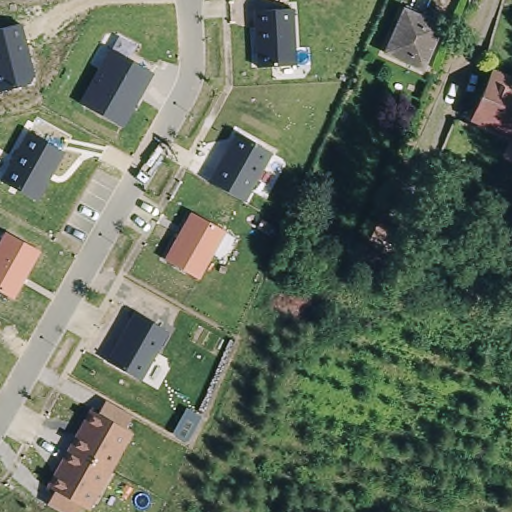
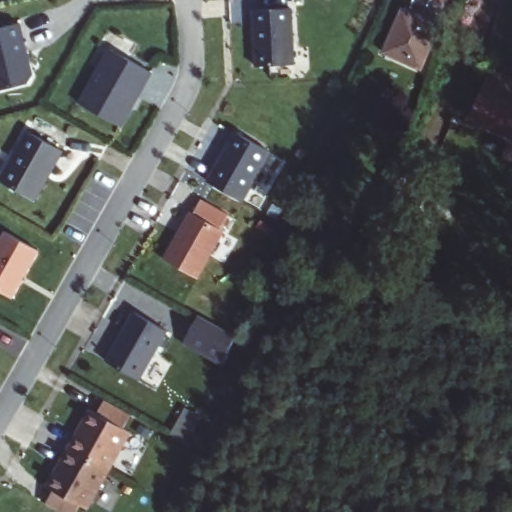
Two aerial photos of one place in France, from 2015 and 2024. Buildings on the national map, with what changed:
unchanged [(405,5),(440,19),(422,62),(387,47),(405,5)]
unchanged [(254,11),(293,10),(295,64),(256,67),(254,11)]
unchanged [(23,22),(35,74),(29,84),(0,92),(0,28),(23,22)]
unchanged [(109,48),(153,72),(124,127),(79,102),(109,48)]
unchanged [(512,71),(512,79),(510,84),(512,85),(512,128),(472,110),(493,63),(512,71)]
unchanged [(27,131),(66,151),(38,201),(0,180),(27,131)]
unchanged [(234,132),(273,152),(244,203),(209,181),(234,132)]
unchanged [(190,212),(226,231),(199,279),(164,259),(190,212)]
unchanged [(40,252),(13,299),(0,292),(0,239),(4,231),(40,252)]
unchanged [(132,312),(168,331),(142,381),(106,360),(132,312)]
new [(182,344),(198,315),(237,336),(221,365),(182,344)]
unchanged [(105,400),(131,413),(124,428),(134,433),(90,511),(81,505),(77,512),(61,512),(46,504),(53,491),(45,487),(88,408),(98,413),(105,400)]

